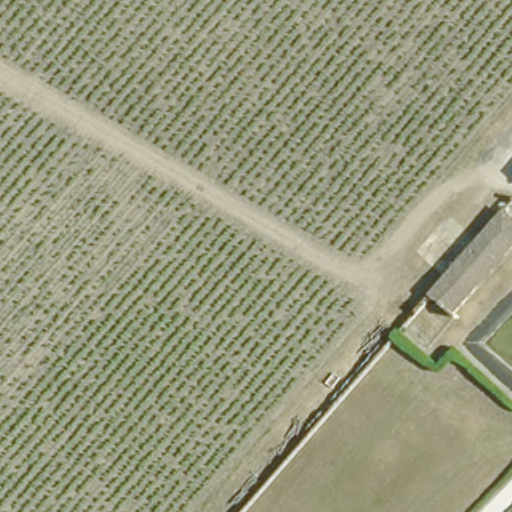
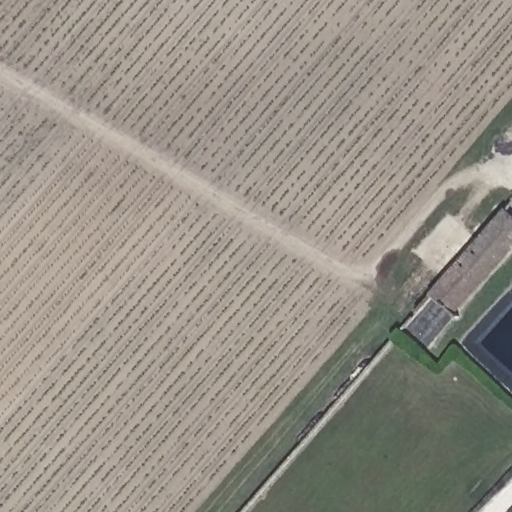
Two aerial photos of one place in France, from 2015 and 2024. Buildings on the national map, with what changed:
unchanged [(512,247),(457,310),(435,291),(479,240),(508,207),(512,212),(512,247)]

